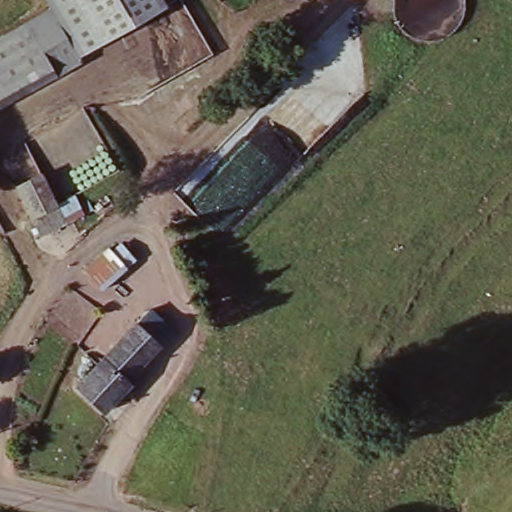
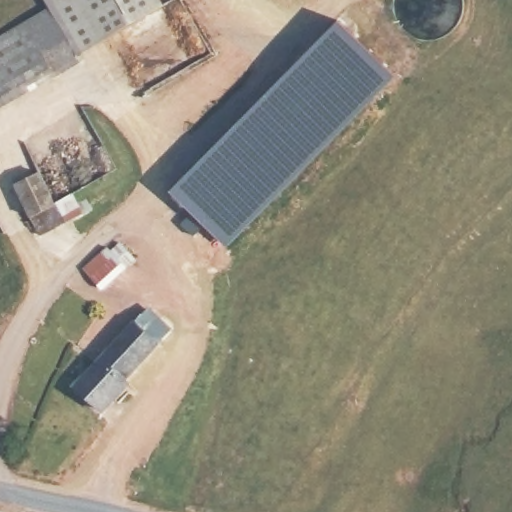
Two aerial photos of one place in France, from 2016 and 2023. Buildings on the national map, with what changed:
unchanged [(53,7),(47,11),(41,0),(160,0),(166,11),(82,62),(53,7)]
unchanged [(55,77),(25,24),(53,7),(82,62),(55,77)]
unchanged [(25,24),(55,77),(0,107),(0,38),(25,24)]
new [(289,73),(338,25),(388,79),(231,247),(174,195),(247,120),(289,73)]
unchanged [(42,172),(57,202),(75,195),(85,215),(42,235),(16,184),(42,172)]
unchanged [(118,251),(132,267),(125,274),(124,275),(105,296),(85,277),(105,256),(108,259),(118,251)]
unchanged [(82,382),(91,370),(152,303),(177,328),(134,376),(139,382),(112,410),(110,407),(82,382)]

